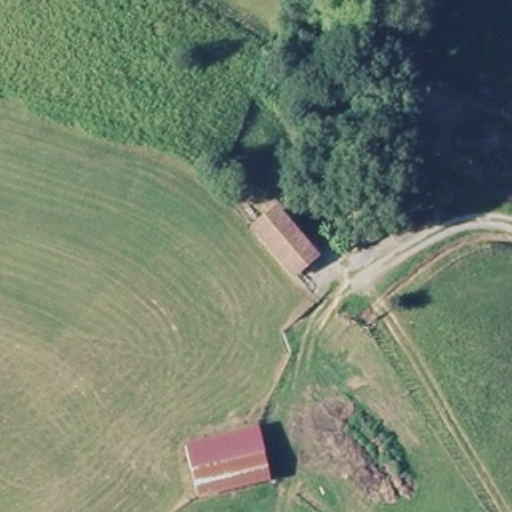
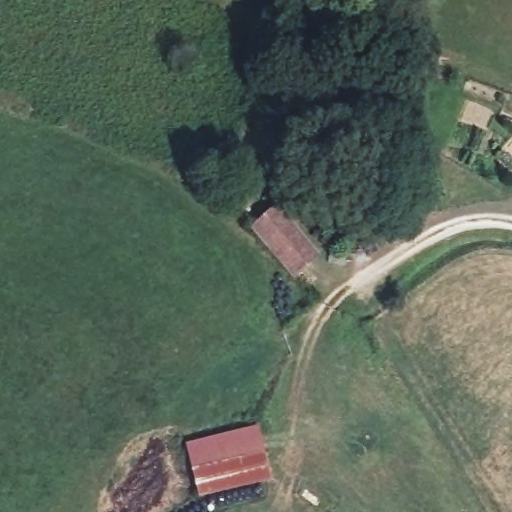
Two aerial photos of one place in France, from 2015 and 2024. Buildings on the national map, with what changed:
unchanged [(318,257),(290,282),(246,231),(274,207),(318,257)]
unchanged [(269,485),(195,503),(188,475),(204,468),(199,455),(257,438),(269,485)]

